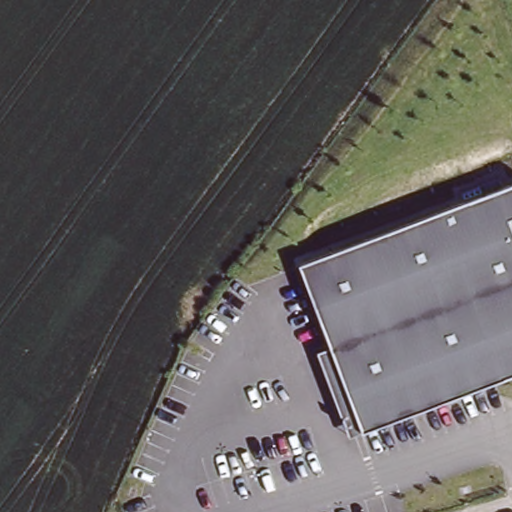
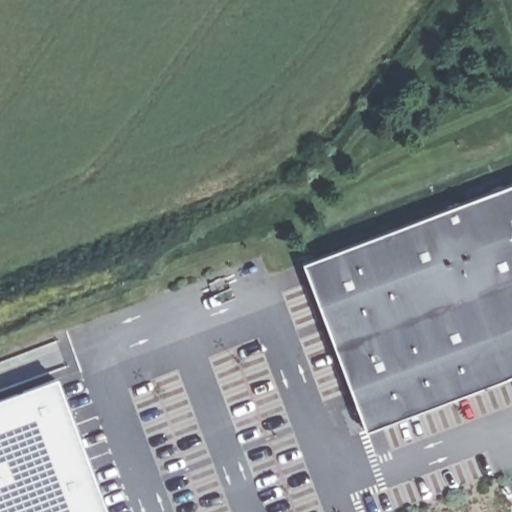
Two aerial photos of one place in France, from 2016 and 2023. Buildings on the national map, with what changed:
unchanged [(333,343),(312,287),(301,259),(512,179),(512,220),(511,220),(512,225),(512,371),(365,427),(333,343)]
new [(0,396),(54,377),(104,512),(0,512),(0,396)]

